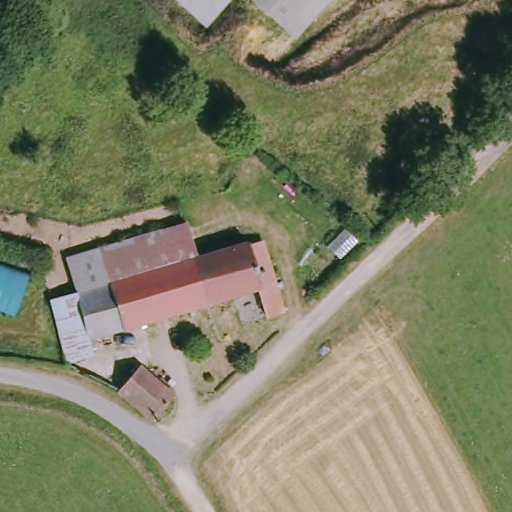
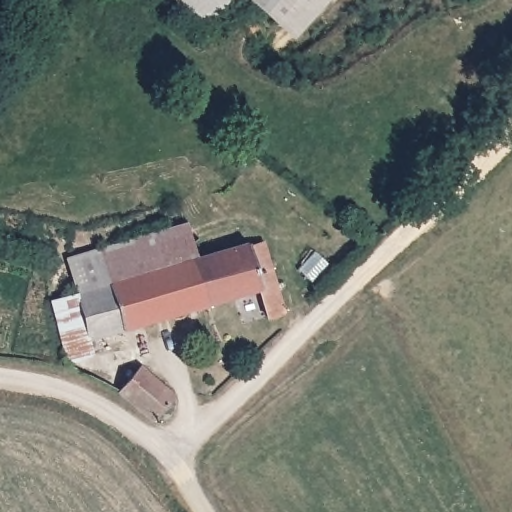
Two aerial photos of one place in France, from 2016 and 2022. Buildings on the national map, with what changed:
unchanged [(208,23),(181,0),(228,0),(208,23)]
unchanged [(282,21),(258,0),(301,0),(282,21)]
unchanged [(189,222),(200,257),(265,236),(287,312),(285,314),(269,319),(260,290),(93,340),(82,296),(82,295),(70,260),(103,250),(189,222)]
unchanged [(18,314),(0,309),(0,268),(26,276),(18,314)]
unchanged [(93,340),(96,353),(76,368),(57,305),(82,296),(93,340)]
unchanged [(207,396),(196,381),(229,356),(239,369),(232,377),(207,396)]
unchanged [(141,368),(176,396),(157,421),(122,392),(141,368)]

